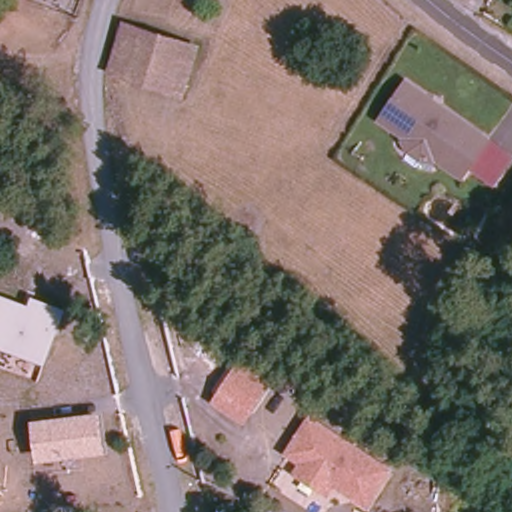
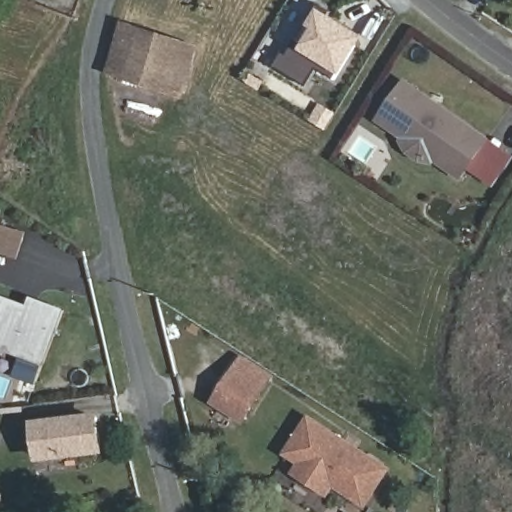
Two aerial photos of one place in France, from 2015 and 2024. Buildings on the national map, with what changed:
new [(335,79),(318,69),(308,85),(277,66),(284,53),(289,56),(297,41),(303,46),(313,27),(309,25),(321,8),(367,36),(343,76),(341,74),(335,79)]
unchanged [(184,95),(166,89),(110,72),(124,25),(180,42),(198,48),(184,95)]
unchanged [(470,171),(461,182),(436,166),(418,162),(407,154),(400,139),(375,121),(405,77),(512,153),(512,160),(495,187),(470,171)]
unchanged [(66,309),(46,363),(0,349),(0,298),(27,306),(30,296),(66,309)]
unchanged [(242,419),(211,401),(241,354),(271,373),(242,419)]
unchanged [(105,454),(37,463),(32,420),(101,412),(105,454)]
unchanged [(366,510),(333,489),(327,500),(289,474),(297,461),(285,453),(310,415),(392,467),(366,510)]

